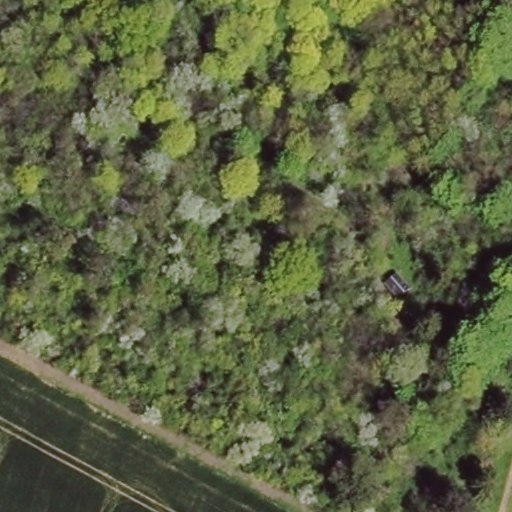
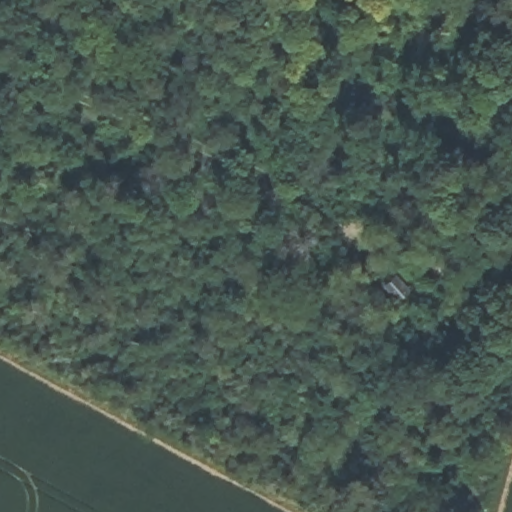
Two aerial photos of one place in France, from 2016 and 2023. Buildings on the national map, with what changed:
unchanged [(405,284),(397,294),(385,285),(394,275),(405,284)]

